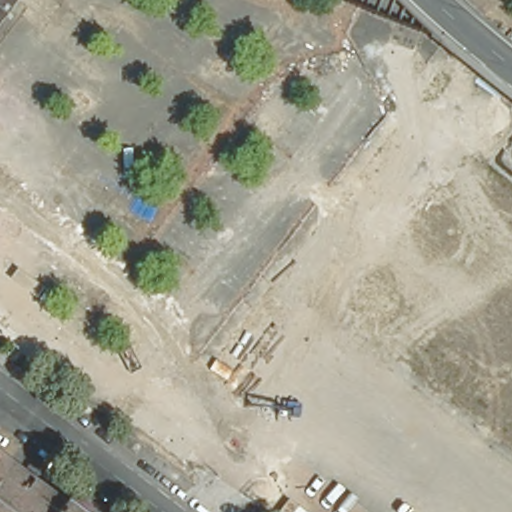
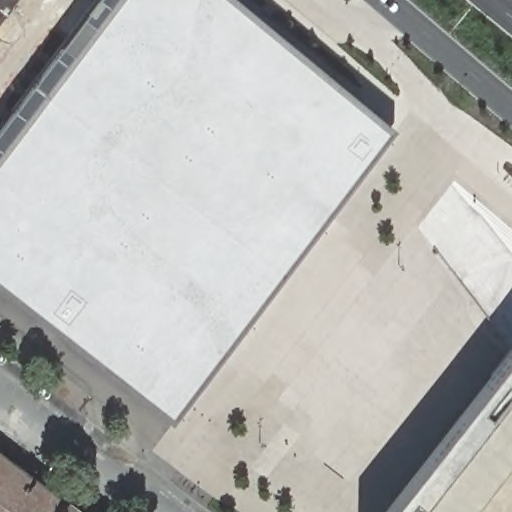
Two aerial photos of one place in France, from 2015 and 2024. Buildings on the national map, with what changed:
unchanged [(0,23),(0,0),(18,0),(0,23)]
new [(172,421),(0,287),(0,153),(117,0),(236,0),(394,129),(172,421)]
new [(512,512),(384,512),(510,348),(512,349),(512,512)]
unchanged [(11,456),(38,477),(64,496),(53,512),(0,512),(0,448),(11,456)]
unchanged [(85,512),(53,512),(64,496),(85,512)]

